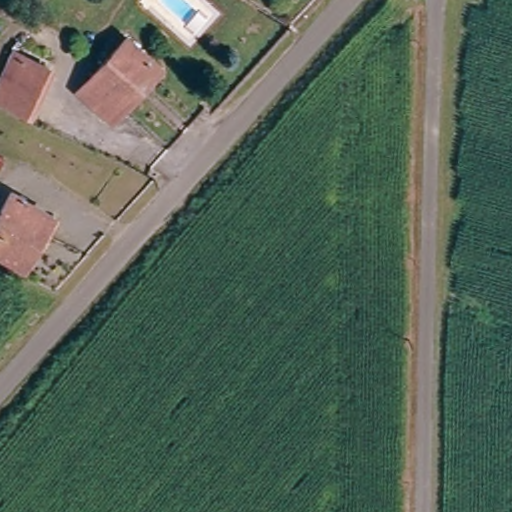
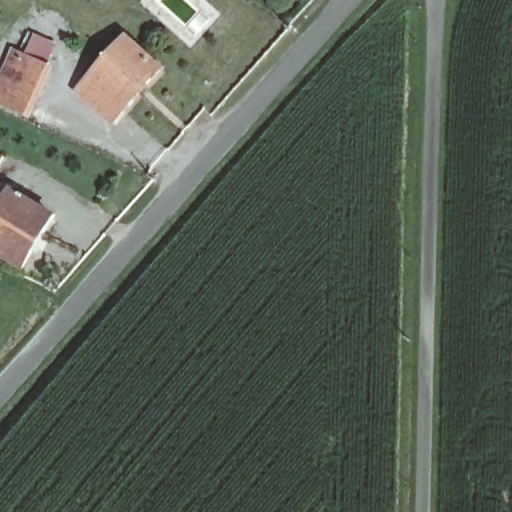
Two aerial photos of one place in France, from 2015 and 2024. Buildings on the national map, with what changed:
unchanged [(104,121),(72,95),(118,39),(157,72),(134,101),(111,126),(104,121)]
unchanged [(21,55),(49,67),(26,112),(0,101),(0,80),(8,82),(21,55)]
unchanged [(0,163),(0,150),(6,152),(0,163)]
unchanged [(55,211),(24,260),(0,246),(0,209),(15,186),(55,211)]

